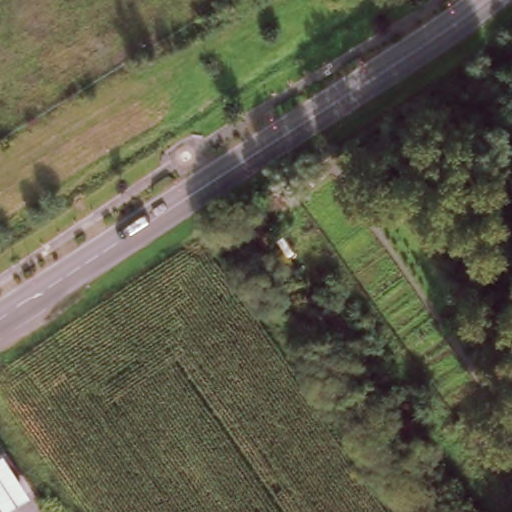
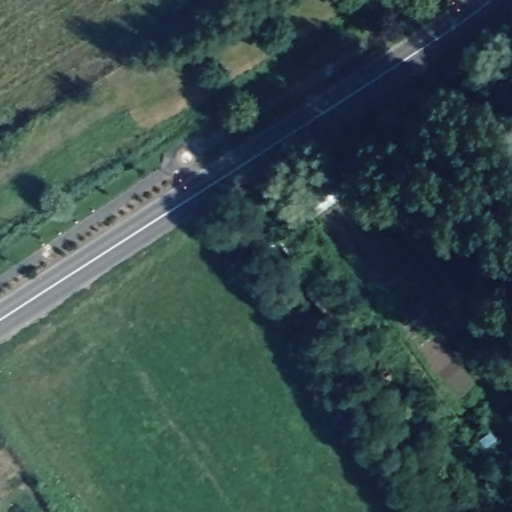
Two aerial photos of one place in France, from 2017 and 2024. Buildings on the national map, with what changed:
demolished [(33,495),(6,511),(0,502),(0,460),(6,457),(33,495)]

